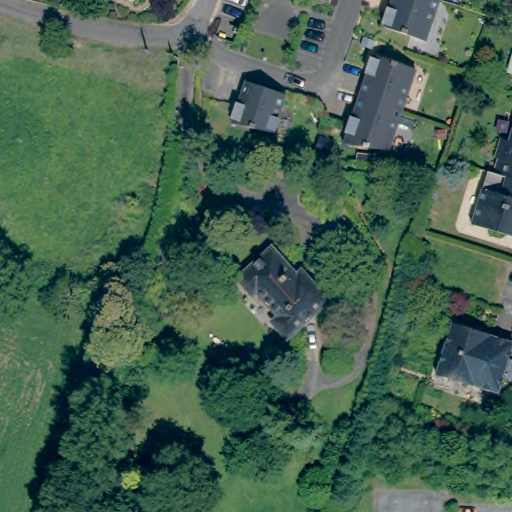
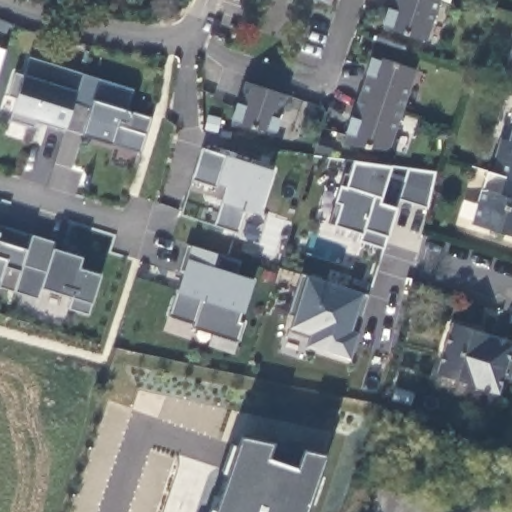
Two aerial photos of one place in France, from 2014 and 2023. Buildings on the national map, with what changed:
unchanged [(330,4),(318,0),(332,0),(330,4)]
unchanged [(439,1),(426,41),(383,27),(392,0),(439,0),(439,1)]
new [(0,74),(0,48),(8,51),(0,74)]
unchanged [(416,70),(403,108),(389,150),(343,144),(359,95),(373,55),(416,70)]
new [(31,56),(82,74),(76,92),(65,127),(11,111),(16,97),(10,94),(16,73),(26,75),(31,56)]
new [(132,91),(126,111),(151,119),(140,152),(81,134),(90,108),(74,103),(83,75),(132,91)]
unchanged [(232,123),(246,81),(286,95),(273,133),(232,123)]
unchanged [(502,162),(493,159),(499,139),(506,141),(508,136),(512,123),(512,180),(498,175),(502,162)]
unchanged [(226,155),(273,170),(259,214),(245,210),(238,234),(214,225),(180,215),(191,180),(203,148),(226,155)]
new [(381,204),(395,208),(386,236),(382,246),(360,240),(363,232),(328,222),(343,172),(349,174),(354,161),(390,166),(381,204)]
new [(426,207),(401,198),(411,169),(435,173),(426,207)]
unchanged [(498,175),(512,180),(512,235),(471,222),(485,171),(498,175)]
new [(26,249),(20,270),(15,290),(0,286),(0,225),(32,234),(26,249)]
new [(55,241),(53,247),(81,256),(78,267),(100,274),(87,314),(67,308),(71,296),(41,287),(37,299),(14,291),(31,234),(55,241)]
new [(237,275),(254,280),(247,301),(246,300),(239,321),(244,322),(238,341),(212,332),(214,325),(195,318),(194,323),(168,315),(176,288),(186,291),(191,277),(176,272),(186,243),(242,261),(237,275)]
demolished [(294,272),(299,269),(322,298),(284,332),(268,315),(274,309),(254,285),(250,288),(237,273),(270,244),(294,272)]
new [(369,294),(357,333),(350,331),(347,339),(354,341),(349,358),(317,348),(319,345),(308,341),(309,337),(289,331),(299,299),(292,297),(300,272),(369,294)]
unchanged [(497,392),(435,373),(451,321),(475,328),(474,331),(485,334),(486,331),(489,332),(488,335),(512,342),(512,344),(497,392)]
new [(208,512),(209,509),(215,511),(241,436),(273,442),(266,456),(297,467),(303,450),(323,453),(303,512),(208,512)]

